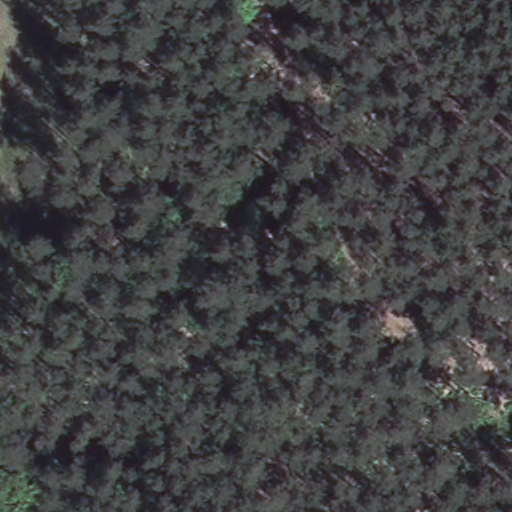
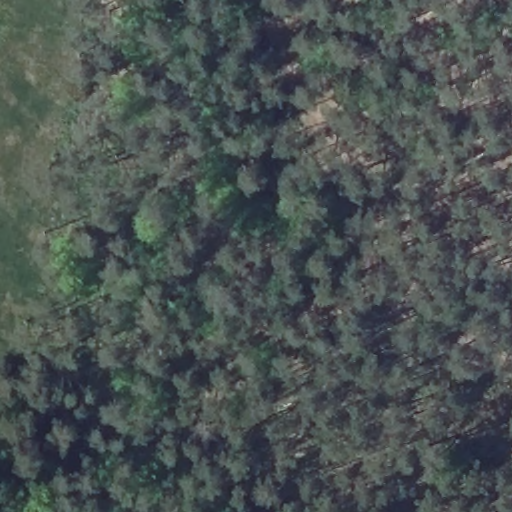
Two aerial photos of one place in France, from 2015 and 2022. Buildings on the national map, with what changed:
[]

